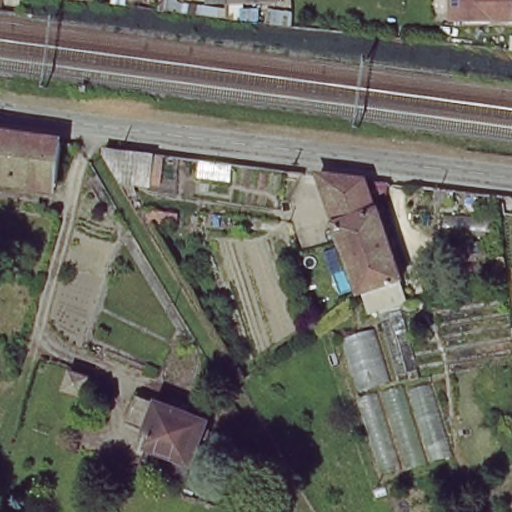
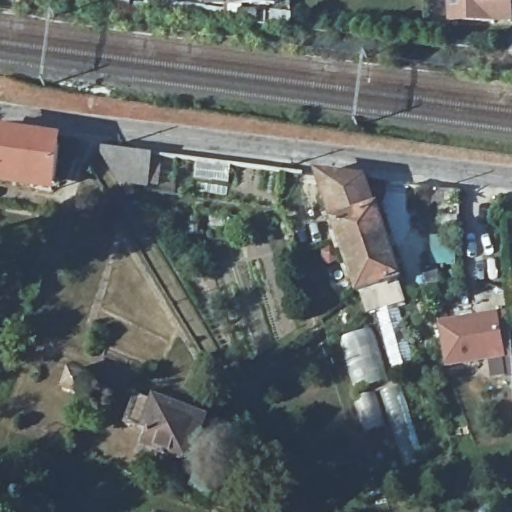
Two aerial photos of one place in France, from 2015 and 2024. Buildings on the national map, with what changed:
unchanged [(228,7),(206,8),(205,0),(279,0),(279,7),(228,7)]
unchanged [(510,19),(449,21),(448,0),(509,0),(510,19)]
unchanged [(0,184),(0,135),(61,143),(54,191),(0,184)]
unchanged [(123,189),(99,149),(156,156),(151,190),(123,189)]
unchanged [(365,249),(376,287),(353,294),(338,247),(314,175),(362,180),(358,220),(365,249)]
unchanged [(376,215),(387,250),(395,281),(376,287),(365,249),(358,220),(376,215)]
new [(503,309),(507,349),(499,350),(441,360),(434,321),(492,311),(503,309)]
unchanged [(454,458),(378,482),(342,340),(376,327),(393,384),(430,376),(454,458)]
unchanged [(87,399),(65,391),(71,371),(94,379),(87,399)]
unchanged [(192,463),(149,446),(153,436),(130,427),(140,397),(206,423),(192,463)]

